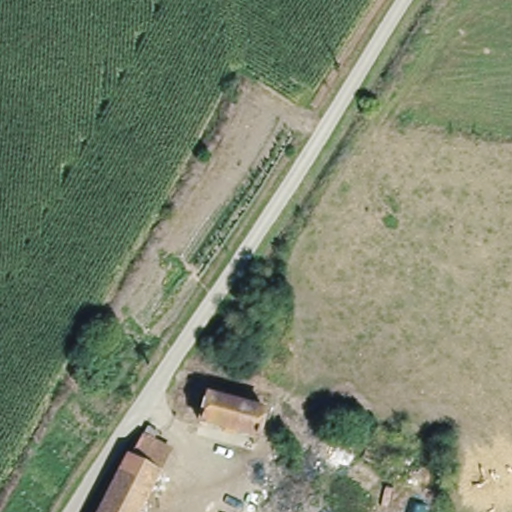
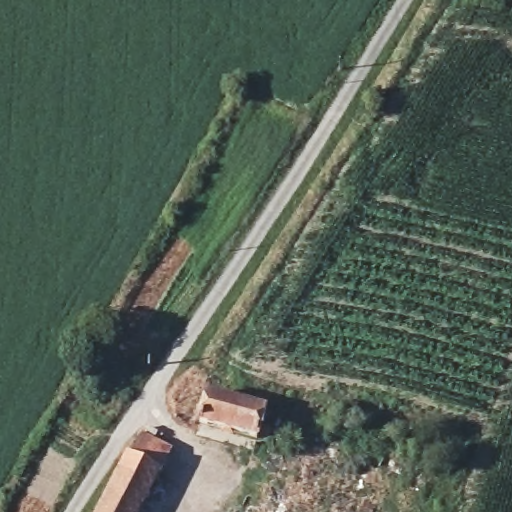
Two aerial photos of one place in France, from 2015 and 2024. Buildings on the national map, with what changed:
unchanged [(199,392),(261,408),(252,439),(191,424),(199,392)]
unchanged [(125,455),(130,457),(131,457),(148,427),(158,432),(154,440),(169,449),(159,471),(160,472),(139,512),(95,512),(125,455)]

